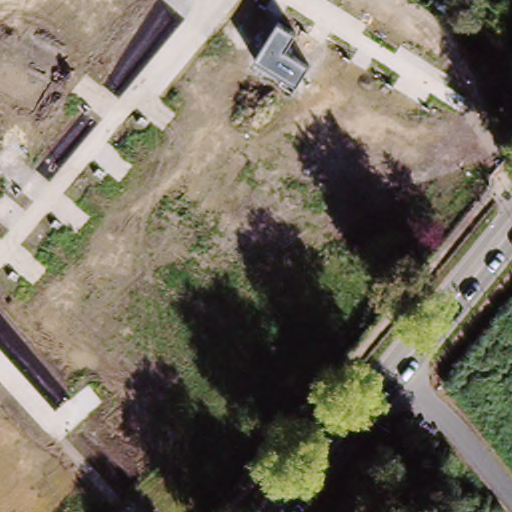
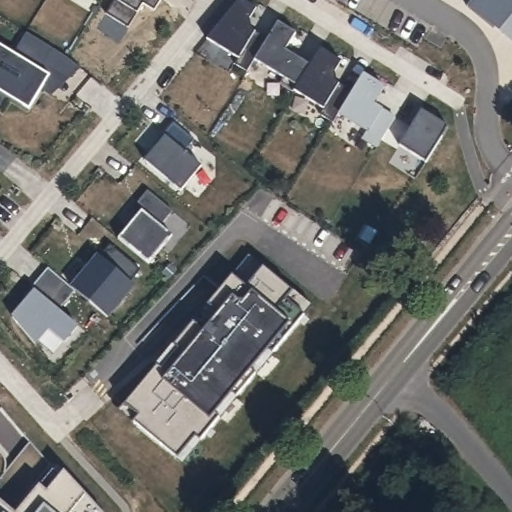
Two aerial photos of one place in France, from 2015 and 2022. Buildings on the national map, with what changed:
new [(258,9),(245,30),(266,44),(256,59),(248,72),(235,64),(238,58),(208,40),(241,0),(243,0),(258,9)]
new [(512,42),(465,5),(469,0),(512,0),(512,42)]
unchanged [(295,32),(286,51),(311,66),(294,93),(279,82),(283,75),(256,59),(266,44),(279,23),(295,32)]
new [(12,52),(25,31),(28,34),(63,55),(69,59),(83,70),(53,86),(48,84),(33,108),(31,111),(0,92),(0,46),(12,52)]
new [(343,62),(330,83),(351,96),(334,125),(320,116),(324,111),(294,93),(311,66),(322,49),(343,62)]
new [(386,89),(373,110),(394,122),(376,151),(363,143),(366,137),(337,120),(364,75),(386,89)]
new [(449,127),(422,172),(395,155),(423,111),(449,127)]
new [(212,155),(181,192),(145,162),(157,147),(155,145),(163,136),(173,123),(212,155)]
new [(144,210),(138,205),(149,191),(174,211),(161,226),(173,235),(149,265),(119,240),(144,210)]
new [(74,290),(101,257),(111,245),(143,272),(132,285),(136,288),(110,320),(75,290),(74,290)]
new [(178,461),(133,423),(138,418),(124,406),(158,367),(161,370),(178,351),(173,347),(250,256),(295,293),(289,301),(307,316),(274,355),(270,351),(254,370),(259,375),(237,400),(233,396),(216,415),(221,420),(201,443),(183,465),(178,461)]
new [(78,292),(61,312),(80,328),(66,345),(50,332),(38,347),(15,320),(38,293),(51,304),(68,285),(78,292)]
new [(296,292),(315,308),(308,317),(289,301),(295,293),(296,292)]
new [(156,366),(173,347),(178,351),(161,370),(157,367),(156,366)]
new [(275,356),(259,375),(254,370),(270,351),(274,355),(275,356)]
new [(238,401),(221,420),(216,415),(233,396),(237,400),(238,401)]
new [(138,418),(133,424),(118,412),(123,405),(124,406),(138,418)]
new [(28,500),(40,486),(48,492),(64,472),(100,512),(31,512),(36,506),(28,500)]
new [(13,512),(0,512),(0,501),(13,512)]

